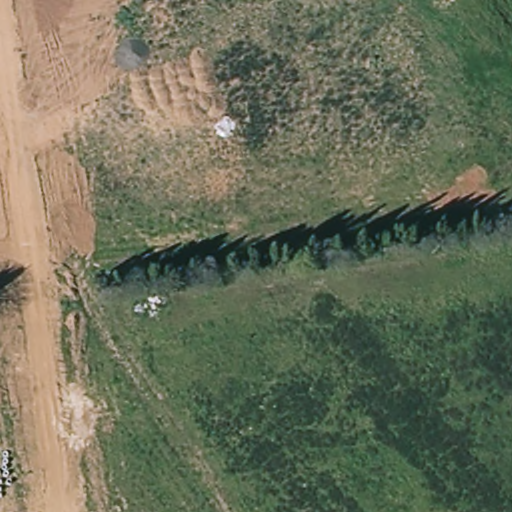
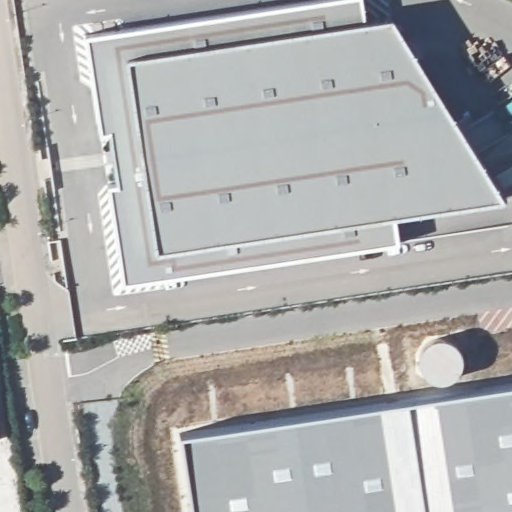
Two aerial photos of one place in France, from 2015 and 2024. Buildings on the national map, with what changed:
new [(396,241),(121,283),(105,185),(116,182),(107,134),(98,135),(83,36),(319,0),(359,0),(360,21),(390,17),(501,199),(390,213),(396,241)]
new [(179,434),(512,383),(512,512),(191,512),(179,434)]

